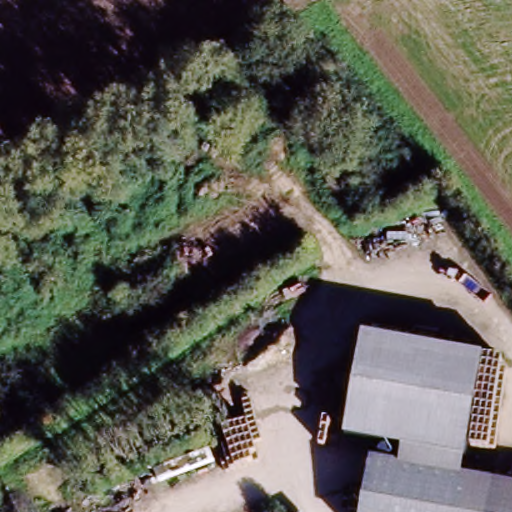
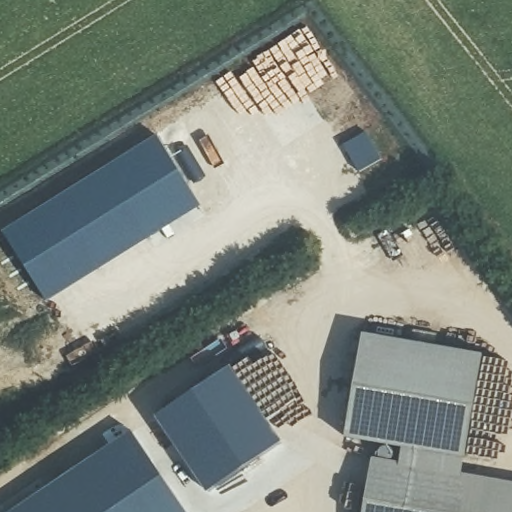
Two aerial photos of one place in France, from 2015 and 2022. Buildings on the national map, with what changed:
new [(362,131),(377,158),(355,171),(340,144),(362,131)]
new [(157,136),(201,206),(47,302),(4,232),(157,136)]
unchanged [(401,449),(345,439),(362,335),(482,355),(464,460),(460,480),(399,470),(401,449)]
new [(278,442),(205,490),(155,413),(228,365),(278,442)]
new [(183,512),(10,512),(128,435),(183,512)]
unchanged [(490,485),(485,512),(360,512),(367,465),(490,485)]
unchanged [(490,480),(512,484),(512,512),(485,512),(490,485),(490,480)]

